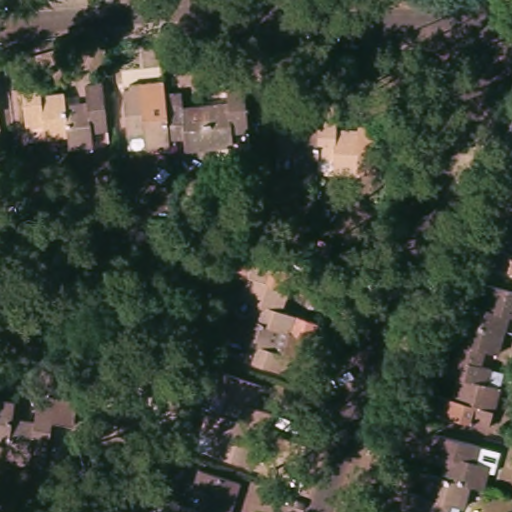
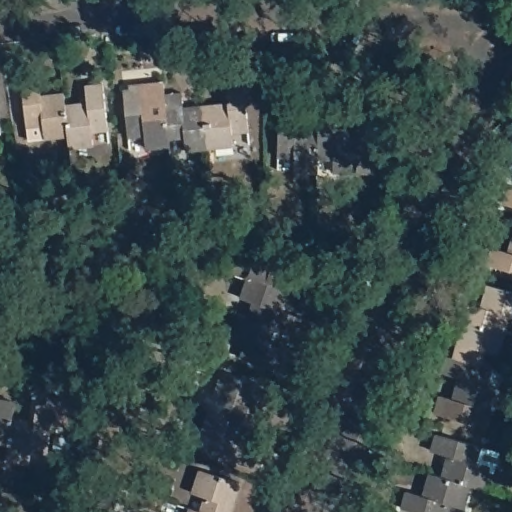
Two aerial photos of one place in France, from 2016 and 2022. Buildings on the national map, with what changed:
unchanged [(37,78),(38,92),(59,91),(59,100),(61,132),(43,133),(42,121),(23,122),(21,78),(37,78)]
unchanged [(136,79),(166,78),(167,90),(170,137),(170,144),(149,144),(148,129),(130,130),(127,90),(136,79)]
unchanged [(85,99),(84,82),(102,81),(103,126),(87,128),(86,142),(62,144),(61,132),(59,100),(85,99)]
unchanged [(226,104),(225,84),(245,83),(248,129),(228,130),(228,146),(208,148),(205,105),(226,104)]
unchanged [(186,89),(188,107),(205,105),(208,148),(186,149),(184,136),(170,137),(167,90),(186,89)]
unchanged [(297,113),(297,129),(319,131),(318,158),(317,171),(296,169),(296,156),(280,156),(282,112),(297,113)]
unchanged [(319,114),(337,113),(336,131),(358,131),(358,126),(374,127),(374,173),(333,173),(333,158),(318,158),(319,131),(319,114)]
unchanged [(503,183),(512,185),(512,204),(498,201),(503,183)]
unchanged [(512,221),(512,227),(510,227),(512,221)]
unchanged [(510,227),(512,227),(512,270),(482,263),(486,248),(503,251),(510,227)]
unchanged [(230,269),(238,248),(306,268),(301,286),(292,284),(287,308),(302,312),(297,330),(252,317),(256,298),(244,295),(250,273),(230,269)]
unchanged [(483,284),(512,292),(512,315),(511,314),(506,333),(459,320),(456,319),(462,301),(478,305),(483,284)]
unchanged [(346,293),(341,310),(323,305),(329,288),(346,293)]
unchanged [(301,332),(296,354),(300,355),(296,367),(288,372),(246,357),(250,339),(240,335),(245,314),(252,317),(297,330),(301,332)]
unchanged [(506,333),(500,356),(490,353),(486,368),(449,358),(459,320),(506,333)]
unchanged [(509,374),(493,429),(431,411),(437,394),(453,400),(458,379),(440,374),(443,356),(449,358),(486,368),(509,374)]
unchanged [(258,381),(253,404),(269,409),(265,428),(247,423),(207,411),(220,370),(258,381)]
unchanged [(11,404),(7,426),(4,442),(0,441),(0,402),(11,404)]
unchanged [(28,431),(33,411),(43,413),(45,404),(72,411),(68,430),(47,425),(40,456),(23,453),(21,465),(0,460),(4,442),(7,426),(28,431)]
unchanged [(247,423),(242,447),(256,450),(251,469),(195,452),(207,411),(247,423)]
unchanged [(473,464),(489,469),(484,489),(470,487),(465,509),(450,506),(448,512),(413,512),(399,509),(404,491),(421,495),(427,473),(439,476),(445,454),(428,449),(433,432),(479,444),(473,464)]
unchanged [(239,479),(231,512),(209,512),(202,510),(205,496),(193,493),(199,469),(239,479)]
unchanged [(190,507),(202,510),(209,512),(188,512),(190,507)]

